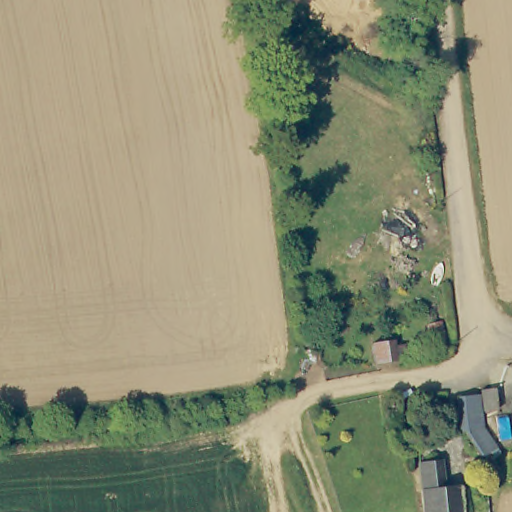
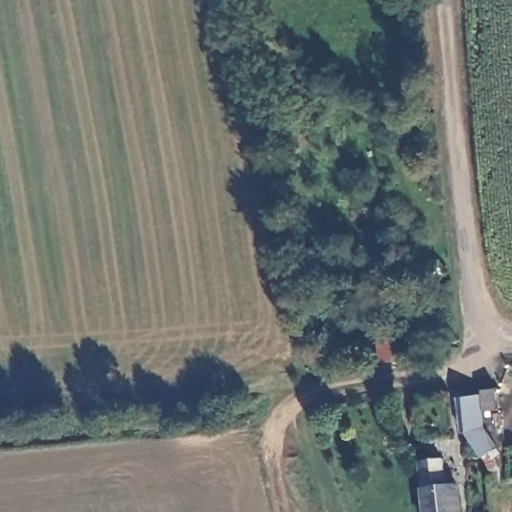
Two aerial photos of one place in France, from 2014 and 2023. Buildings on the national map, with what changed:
unchanged [(428,324),(442,321),(446,340),(433,344),(428,324)]
unchanged [(378,363),(374,343),(396,340),(397,345),(406,344),(407,356),(399,357),(400,360),(378,363)]
unchanged [(481,385),(495,383),(495,387),(511,385),(512,391),(512,395),(497,397),(498,404),(482,406),(481,385)]
unchanged [(484,456),(492,451),(490,447),(481,453),(464,426),(460,427),(457,392),(478,389),(483,422),(496,443),(499,448),(493,452),(499,465),(493,468),(484,456)]
unchanged [(442,460),(445,487),(457,485),(461,512),(425,512),(419,462),(442,460)]

